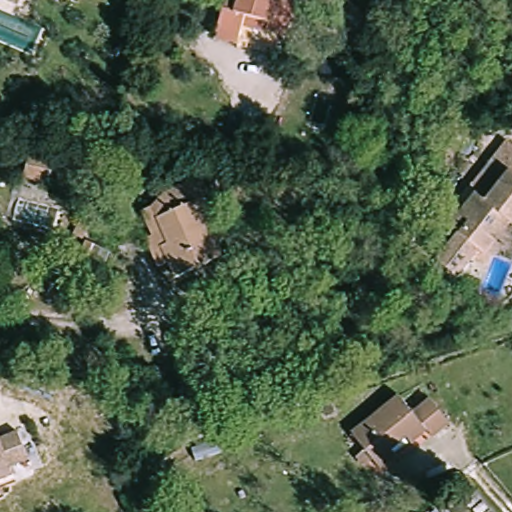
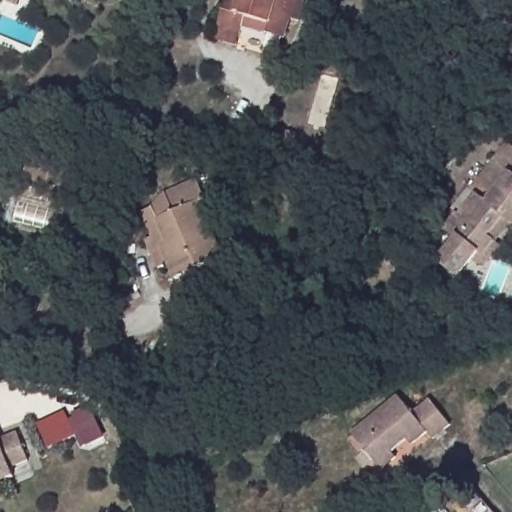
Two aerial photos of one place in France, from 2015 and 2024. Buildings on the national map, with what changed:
unchanged [(14,0),(21,0),(20,2),(14,0)]
unchanged [(246,23),(239,45),(218,40),(229,0),(242,0),(307,0),(298,24),(292,22),(285,43),(268,38),(271,31),(246,23)]
unchanged [(480,249),(463,271),(460,276),(449,268),(440,260),(461,234),(451,225),(465,207),(478,191),(472,187),(509,140),(512,142),(512,230),(491,257),(485,252),(480,249)]
unchanged [(53,165),(48,186),(23,180),(27,159),(53,165)]
unchanged [(147,225),(145,215),(160,205),(168,182),(206,170),(215,199),(208,201),(227,262),(177,280),(172,266),(160,270),(147,225)]
unchanged [(83,242),(70,239),(75,221),(87,225),(83,242)]
unchanged [(89,265),(81,262),(87,243),(95,245),(89,265)]
unchanged [(428,430),(410,446),(404,439),(388,451),(395,458),(378,472),(349,437),(396,397),(411,415),(428,401),(447,425),(433,437),(428,430)]
new [(67,416),(91,406),(105,438),(87,446),(80,431),(47,448),(37,424),(65,410),(67,416)]
unchanged [(19,435),(30,461),(9,470),(13,482),(0,488),(0,443),(19,435)]

